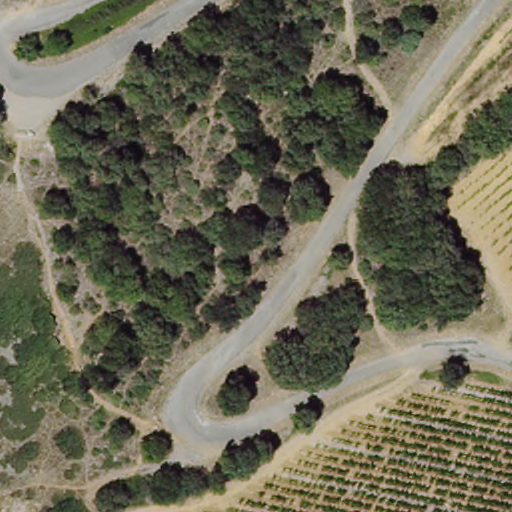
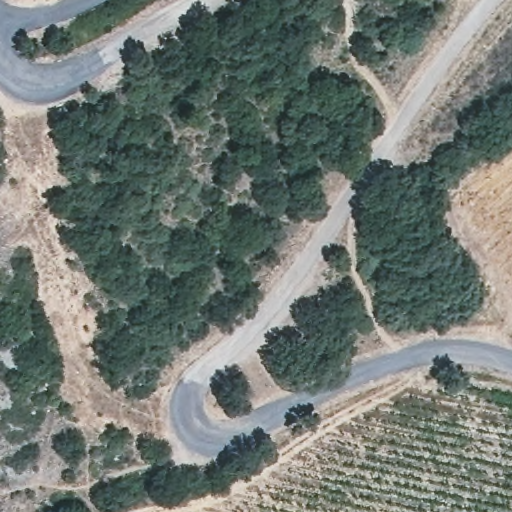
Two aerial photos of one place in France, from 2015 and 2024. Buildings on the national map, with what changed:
[]

